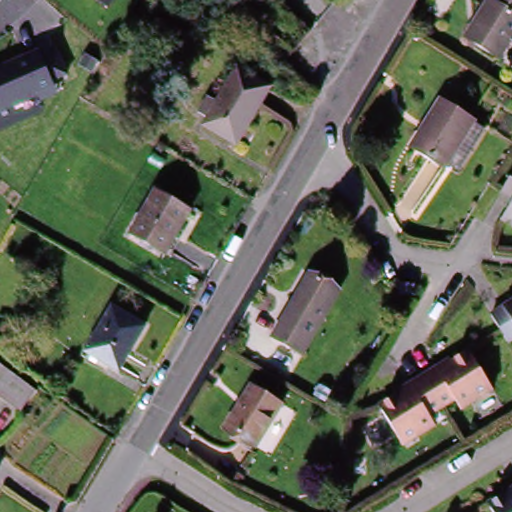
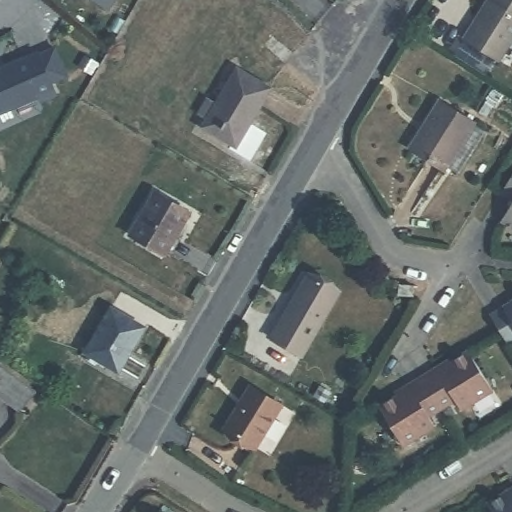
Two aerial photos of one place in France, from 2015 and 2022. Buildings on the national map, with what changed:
unchanged [(103,9),(92,0),(111,0),(103,9)]
unchanged [(512,34),(498,57),(464,36),(487,0),(512,0),(512,34)]
unchanged [(45,47),(53,63),(62,60),(68,77),(54,82),(60,96),(40,105),(38,98),(0,114),(0,65),(45,47)]
unchanged [(238,71),(271,90),(238,148),(204,129),(210,120),(201,114),(209,101),(218,106),(238,71)]
unchanged [(439,167),(404,145),(434,98),(469,120),(467,123),(478,129),(453,170),(441,163),(439,167)]
unchanged [(512,201),(500,194),(512,174),(512,201)]
unchanged [(131,234),(155,196),(191,216),(168,255),(131,234)]
unchanged [(512,203),(512,228),(501,222),(512,203)]
unchanged [(341,289),(303,352),(271,333),(309,270),(341,289)]
unchanged [(415,288),(414,298),(399,297),(400,287),(415,288)]
unchanged [(512,290),(512,293),(511,291),(512,290)]
unchanged [(487,307),(499,300),(501,303),(512,296),(512,328),(503,335),(487,307)]
unchanged [(89,356),(92,352),(86,349),(113,305),(144,324),(118,368),(99,356),(96,360),(89,356)]
unchanged [(437,370),(439,372),(469,354),(494,393),(462,412),(454,399),(441,407),(424,379),(437,370)]
unchanged [(21,413),(0,397),(0,367),(35,394),(21,413)]
unchanged [(424,379),(441,407),(427,415),(436,429),(404,448),(380,409),(411,390),(409,387),(424,379)]
unchanged [(224,429),(249,387),(283,407),(257,449),(224,429)]
unchanged [(502,491),(505,496),(512,490),(512,512),(491,512),(484,502),(502,491)]

